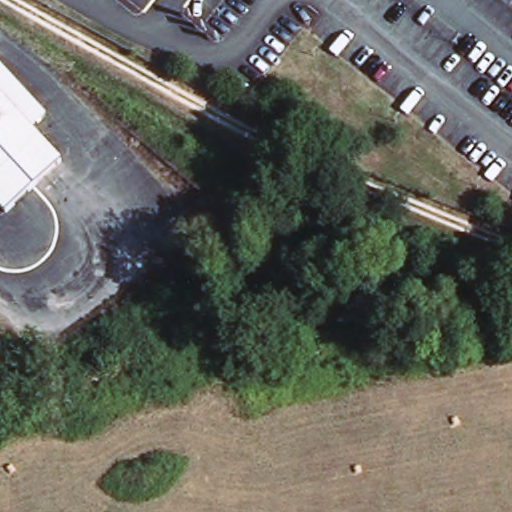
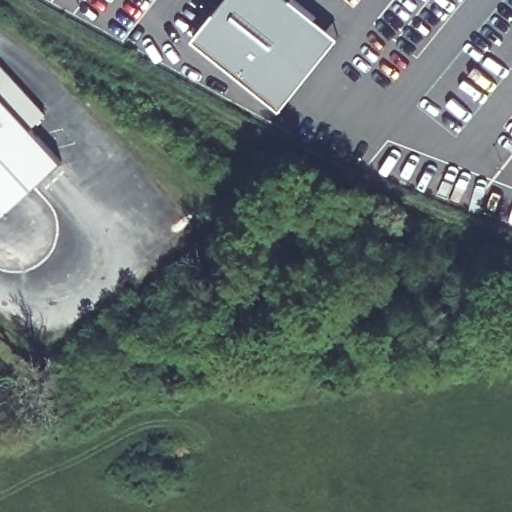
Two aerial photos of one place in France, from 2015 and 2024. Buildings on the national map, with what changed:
new [(298,0),(306,6),(341,36),(281,109),(192,37),(222,0),(298,0)]
unchanged [(46,114),(32,126),(62,158),(6,210),(0,204),(0,63),(46,114)]

